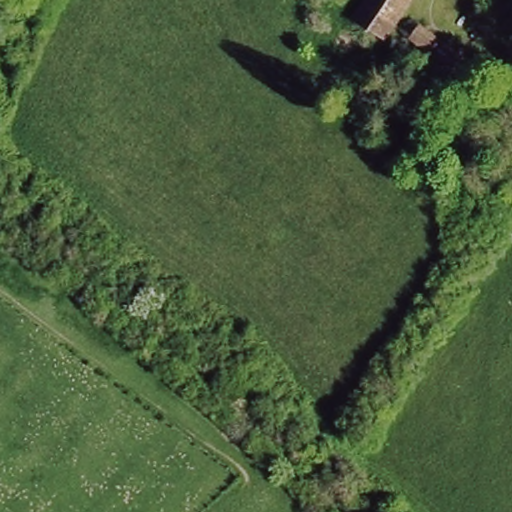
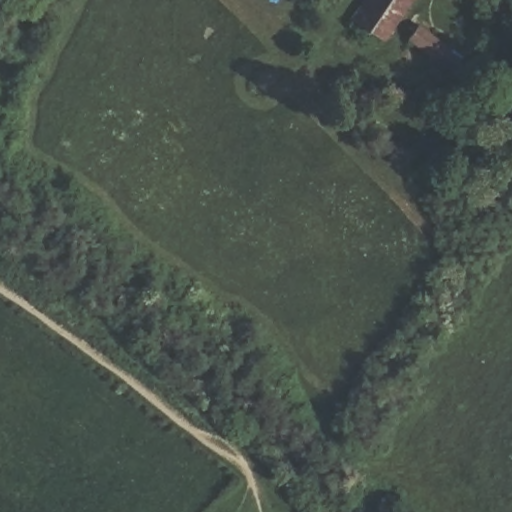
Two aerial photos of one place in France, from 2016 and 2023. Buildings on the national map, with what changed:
unchanged [(382,35),(350,15),(360,0),(407,0),(382,35)]
unchanged [(470,62),(462,75),(418,44),(427,31),(470,62)]

